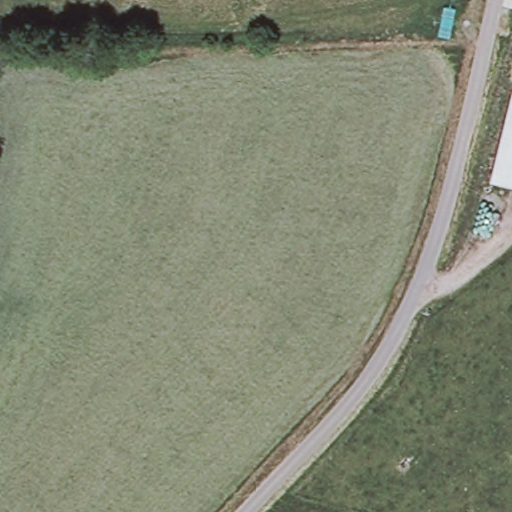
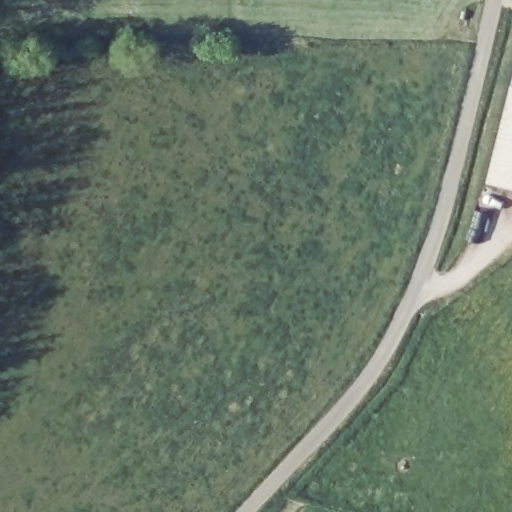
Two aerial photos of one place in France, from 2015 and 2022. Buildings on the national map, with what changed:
unchanged [(487,185),(512,88),(512,192),(487,185)]

